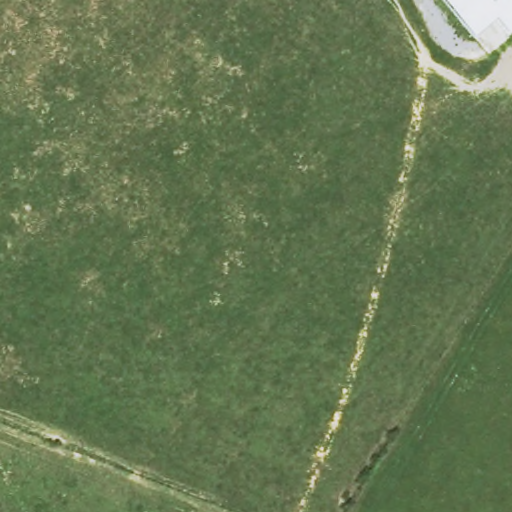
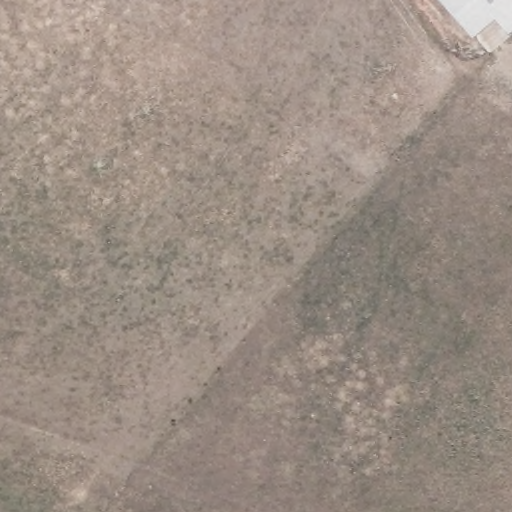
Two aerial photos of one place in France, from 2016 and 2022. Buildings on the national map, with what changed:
unchanged [(510,35),(497,19),(474,39),(441,0),(512,0),(512,33),(510,35)]

